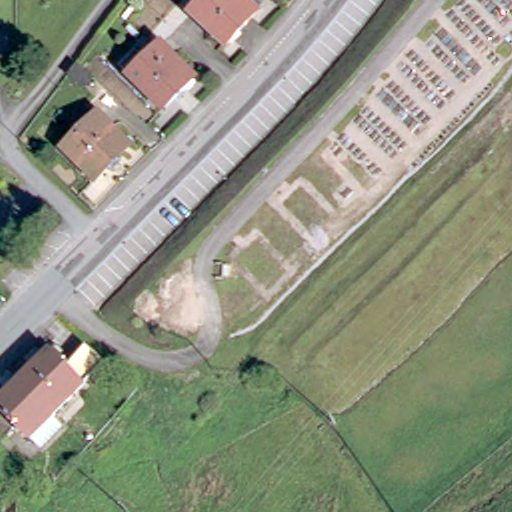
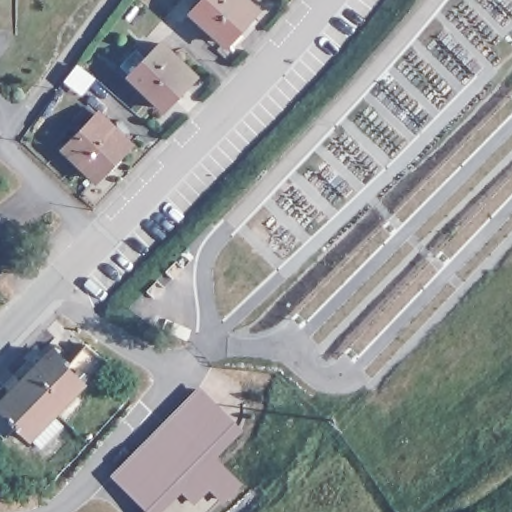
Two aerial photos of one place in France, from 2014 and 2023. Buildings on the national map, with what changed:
unchanged [(238,53),(202,21),(221,0),(245,0),(268,21),(238,53)]
unchanged [(152,60),(165,47),(200,79),(170,109),(122,66),(139,48),(152,60)]
unchanged [(71,160),(103,124),(133,151),(123,160),(129,165),(118,177),(114,172),(101,187),(71,160)]
unchanged [(98,388),(92,382),(56,419),(65,428),(45,450),(35,440),(33,442),(19,428),(6,441),(0,435),(0,408),(50,356),(66,370),(88,348),(115,370),(98,388)]
new [(201,388),(241,428),(213,456),(183,425),(176,432),(166,423),(201,388)]
new [(166,423),(176,432),(183,425),(213,456),(241,483),(211,512),(153,512),(150,509),(115,475),(166,423)]
new [(150,509),(153,512),(147,512),(150,509)]

